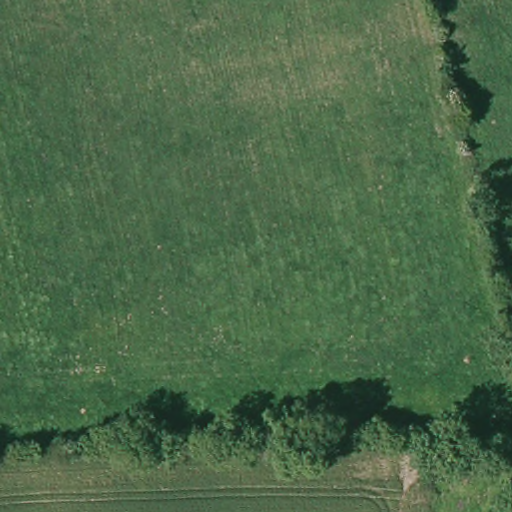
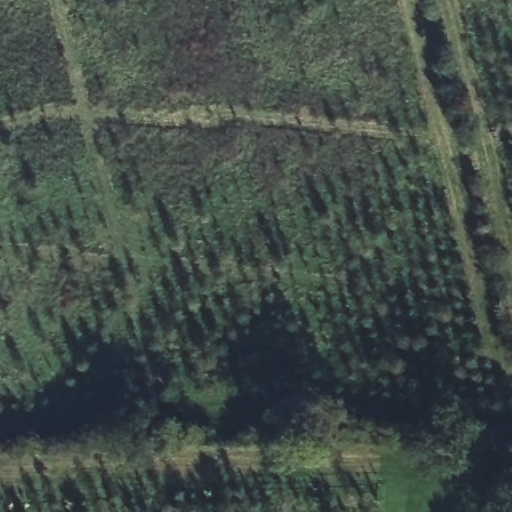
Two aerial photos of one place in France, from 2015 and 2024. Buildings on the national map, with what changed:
[]

